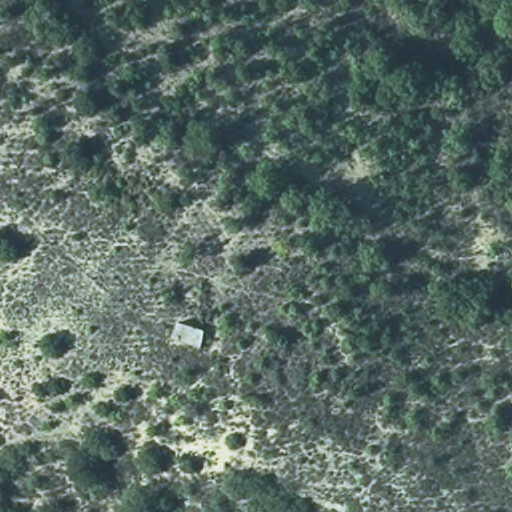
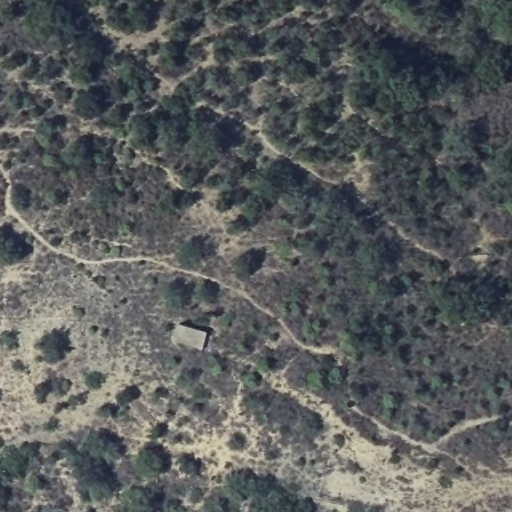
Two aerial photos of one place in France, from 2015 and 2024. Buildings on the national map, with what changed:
unchanged [(179,320),(208,328),(202,346),(174,339),(179,320)]

